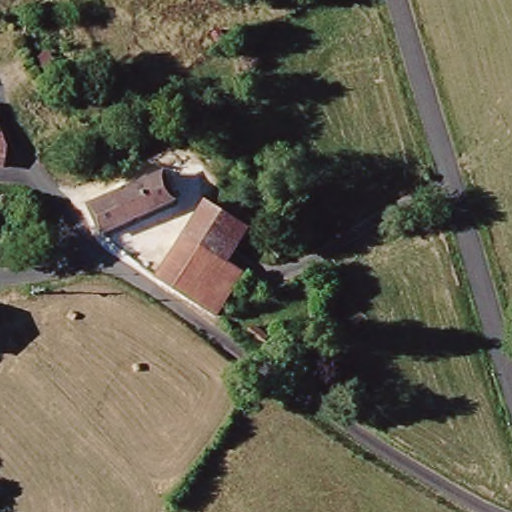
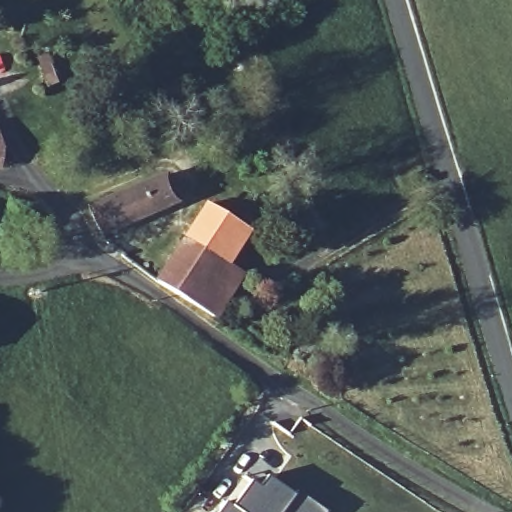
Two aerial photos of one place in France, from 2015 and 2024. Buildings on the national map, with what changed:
unchanged [(6,168),(0,166),(0,135),(3,150),(6,168)]
unchanged [(101,229),(89,202),(116,194),(143,185),(164,179),(172,206),(101,229)]
unchanged [(254,224),(229,267),(246,276),(217,322),(196,307),(157,286),(183,243),(186,244),(208,208),(216,214),(219,207),(228,213),(230,209),(254,224)]
new [(225,503),(231,507),(249,483),(258,488),(266,477),(293,497),(296,493),(321,512),(220,512),(225,503)]

